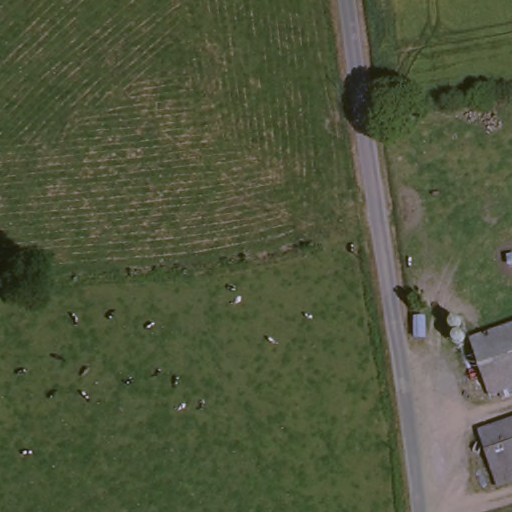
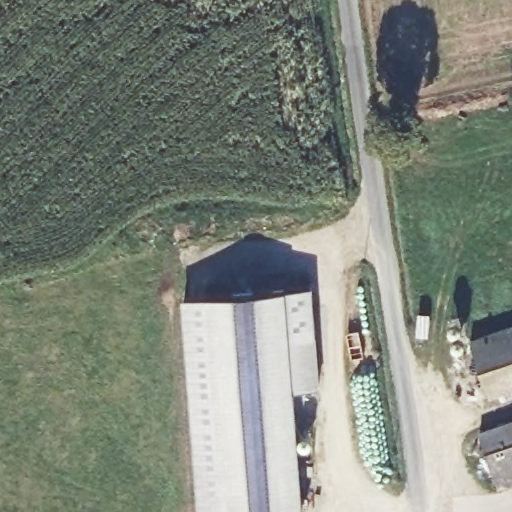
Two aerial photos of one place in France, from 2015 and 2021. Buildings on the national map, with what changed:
new [(320,386),(295,388),(303,512),(199,512),(183,295),(313,285),(320,386)]
unchanged [(512,389),(486,399),(468,339),(512,324),(512,389)]
unchanged [(485,426),(512,416),(512,477),(504,480),(485,426)]

